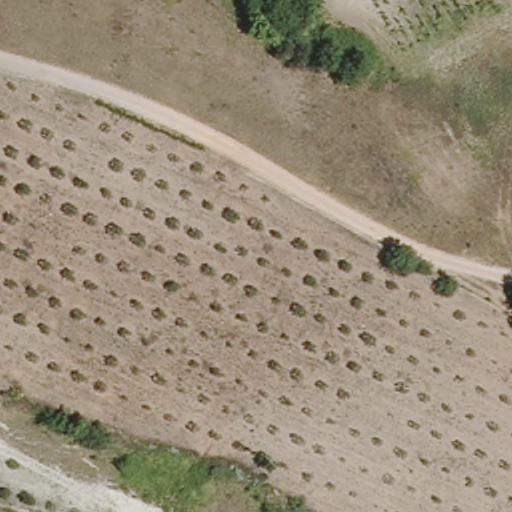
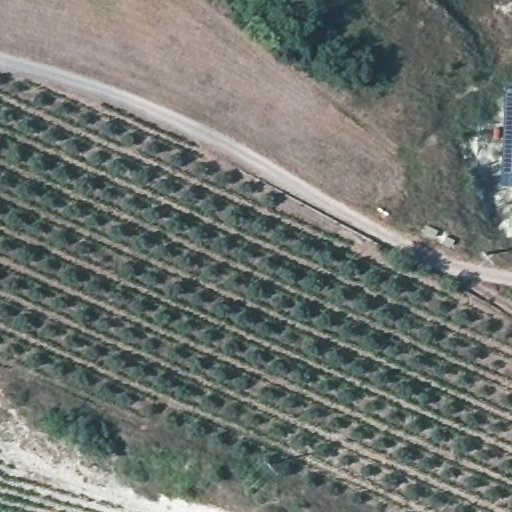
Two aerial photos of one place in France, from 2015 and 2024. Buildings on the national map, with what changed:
new [(512,88),(512,185),(501,185),(504,88),(512,88)]

